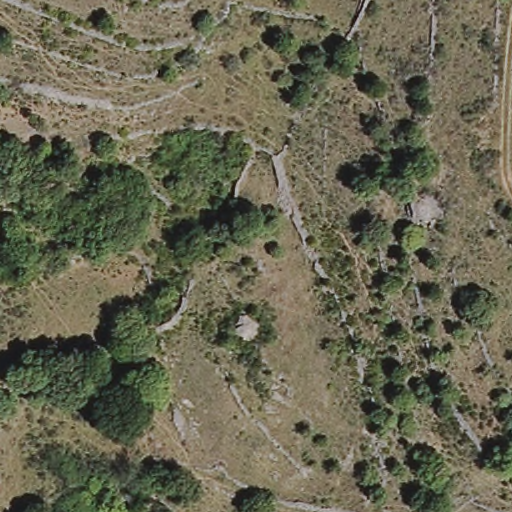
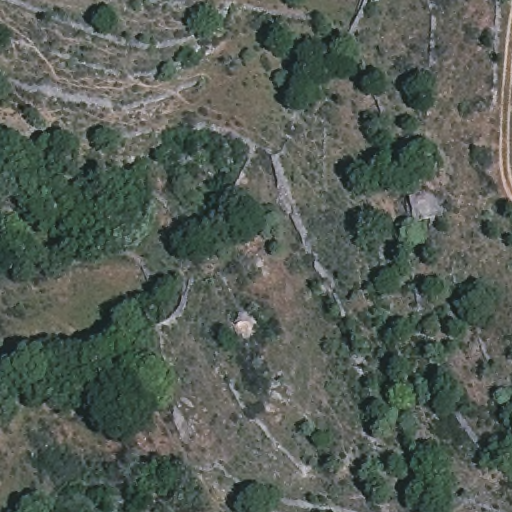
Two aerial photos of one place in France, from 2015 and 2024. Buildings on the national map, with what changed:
unchanged [(253,313),(249,339),(228,338),(236,310),(253,313)]

